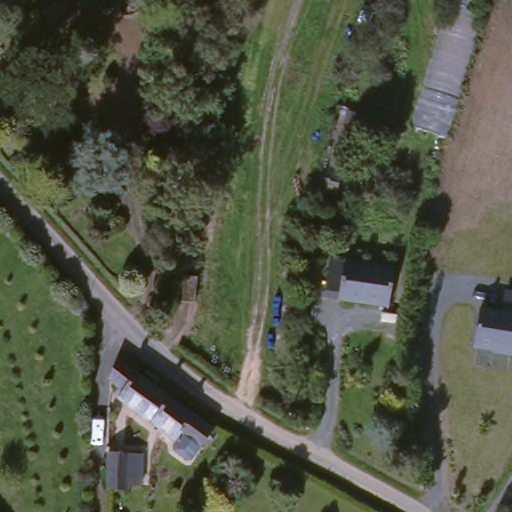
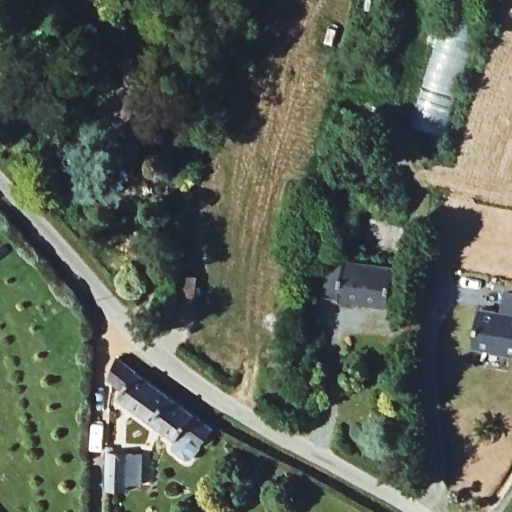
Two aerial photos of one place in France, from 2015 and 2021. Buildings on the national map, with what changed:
unchanged [(417,124),(452,0),(493,0),(451,137),(417,124)]
unchanged [(344,254),(359,256),(359,255),(408,261),(403,301),(353,295),(354,293),(339,291),(344,254)]
unchanged [(200,282),(185,281),(187,256),(202,257),(200,282)]
unchanged [(505,350),(505,348),(474,343),(480,306),(502,309),(505,289),(512,291),(512,352),(505,350)]
unchanged [(202,459),(197,460),(184,450),(183,445),(186,440),(128,397),(132,390),(119,378),(127,357),(224,429),(211,447),(205,454),(202,459)]
unchanged [(114,446),(147,449),(147,479),(132,479),(132,485),(112,485),(114,446)]

